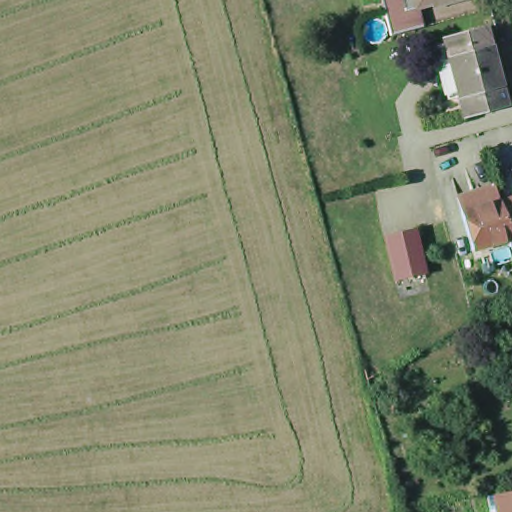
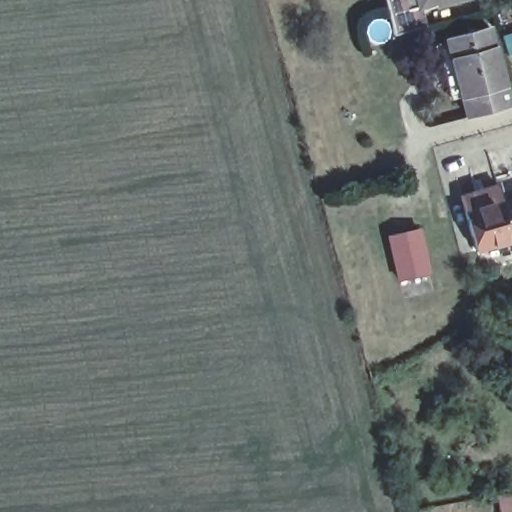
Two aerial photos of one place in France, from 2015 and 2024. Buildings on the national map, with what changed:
unchanged [(433,19),(402,27),(395,0),(428,0),(433,19)]
unchanged [(452,68),(465,65),(456,35),(495,24),(512,84),(512,103),(479,112),(475,97),(462,101),(452,68)]
unchanged [(475,248),(464,209),(459,194),(497,184),(497,186),(502,199),(512,196),(512,237),(475,248)]
unchanged [(415,227),(426,271),(397,278),(387,234),(415,227)]
unchanged [(508,512),(505,491),(512,490),(512,512),(508,512)]

